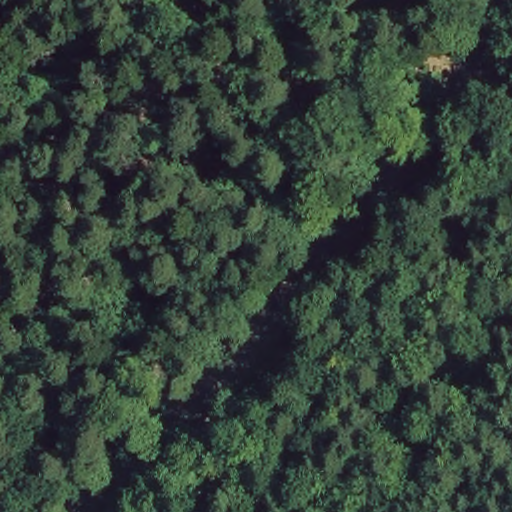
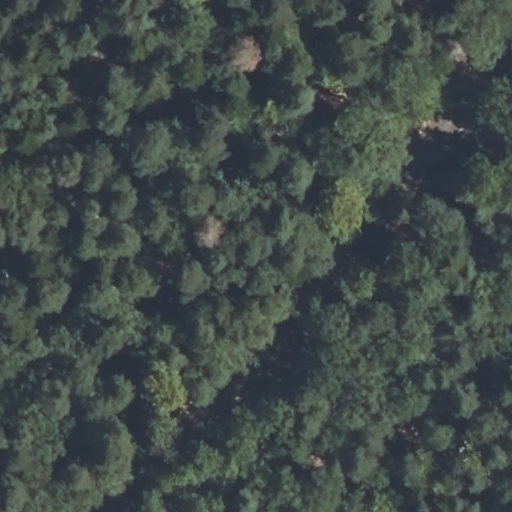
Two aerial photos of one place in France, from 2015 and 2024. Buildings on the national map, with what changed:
[]

